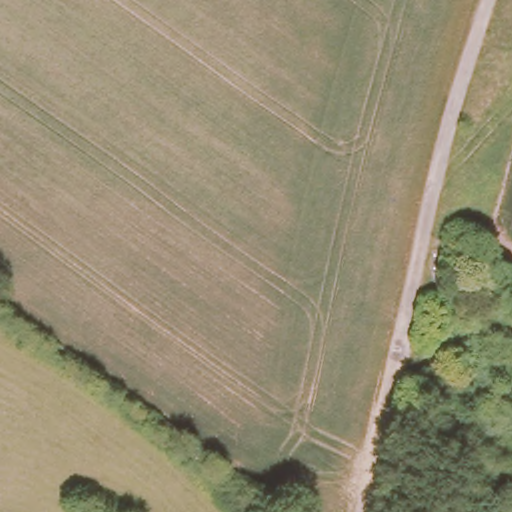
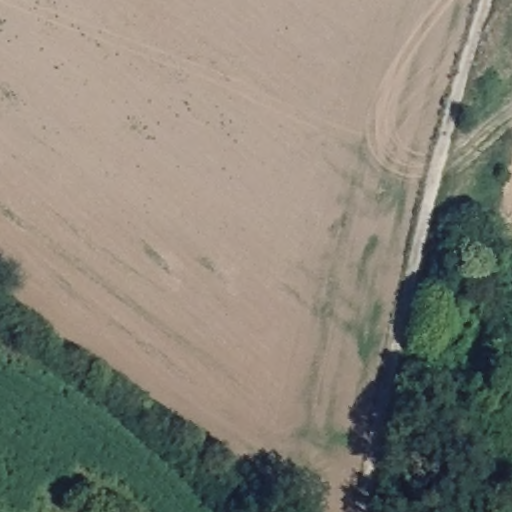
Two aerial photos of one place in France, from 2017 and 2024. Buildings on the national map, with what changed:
unchanged [(481,300),(466,292),(478,267),(493,273),(481,300)]
unchanged [(482,383),(504,396),(474,445),(452,432),(482,383)]

